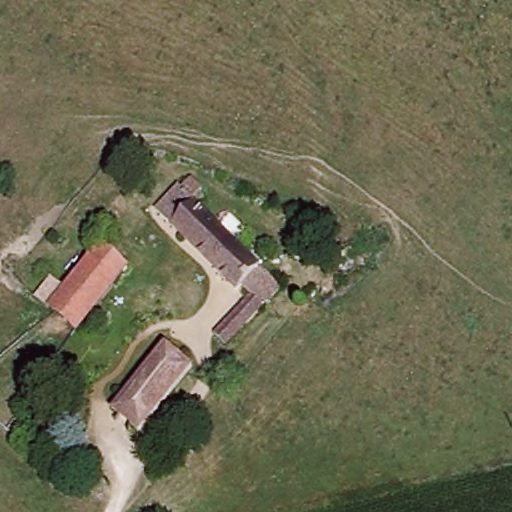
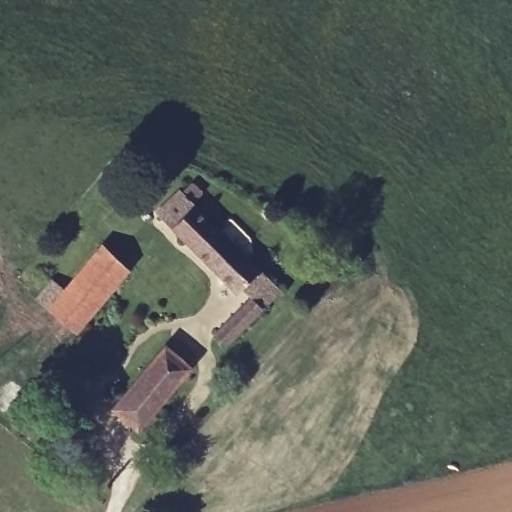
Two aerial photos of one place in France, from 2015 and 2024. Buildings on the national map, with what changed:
unchanged [(203,212),(289,292),(232,346),(222,333),(252,302),(158,213),(190,175),(215,199),(203,212)]
unchanged [(84,333),(57,311),(105,252),(133,271),(84,333)]
unchanged [(116,411),(170,340),(202,363),(145,435),(116,411)]

